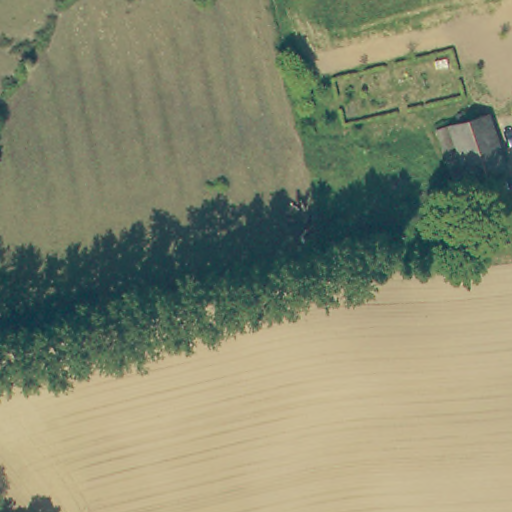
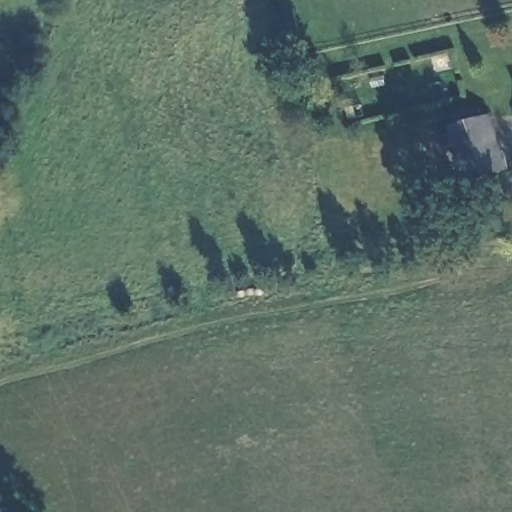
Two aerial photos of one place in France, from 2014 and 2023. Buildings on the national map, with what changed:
unchanged [(437,120),(449,116),(489,104),(507,157),(469,172),(457,177),(437,120)]

